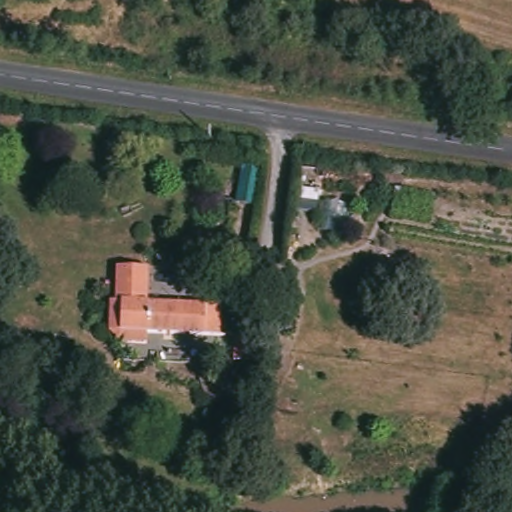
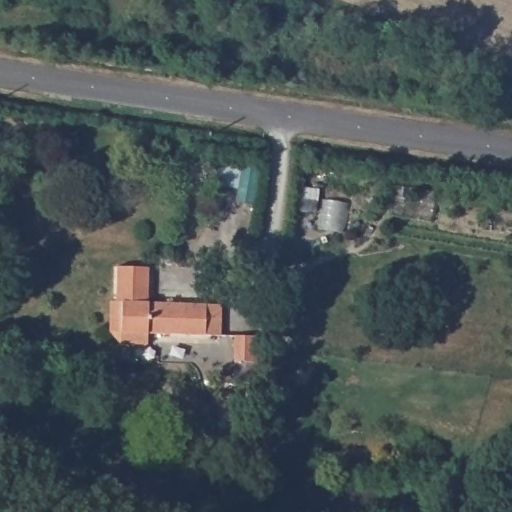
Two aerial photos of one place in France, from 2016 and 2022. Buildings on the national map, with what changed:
unchanged [(113,301),(116,266),(149,268),(149,303),(113,301)]
unchanged [(220,306),(219,338),(146,334),(145,345),(118,343),(107,332),(109,301),(220,306)]
unchanged [(242,365),(236,365),(217,364),(219,338),(237,339),(243,340),(242,365)]

